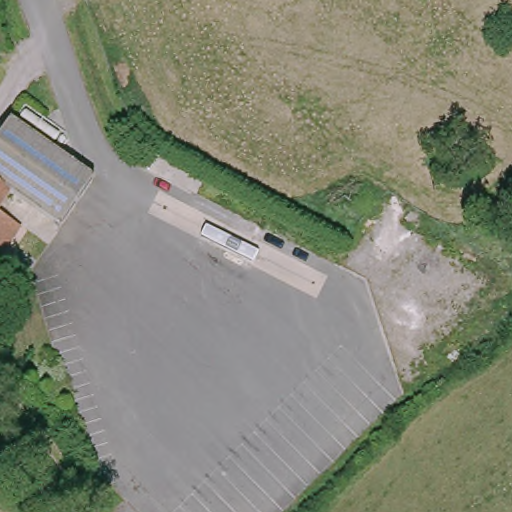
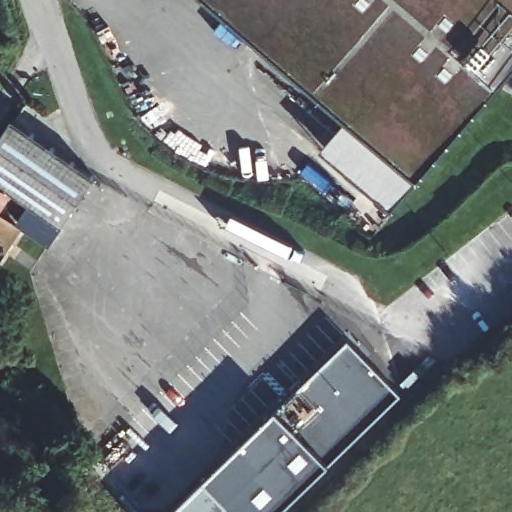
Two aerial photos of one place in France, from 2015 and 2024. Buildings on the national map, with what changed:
new [(390,208),(317,151),(346,116),(207,0),(512,0),(512,83),(390,208)]
unchanged [(88,174),(67,210),(14,175),(0,164),(0,130),(5,122),(88,174)]
unchanged [(0,164),(14,175),(0,196),(0,164)]
new [(95,178),(50,245),(18,222),(30,203),(7,186),(14,175),(67,210),(88,174),(95,178)]
unchanged [(0,246),(0,212),(15,223),(0,246)]
new [(328,464),(280,512),(170,512),(275,410),(347,339),(402,393),(328,464)]

